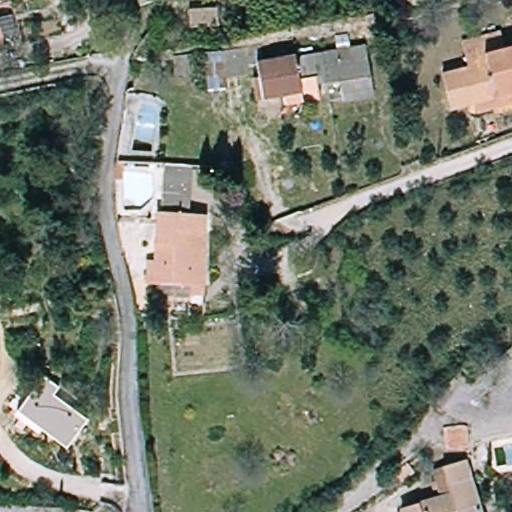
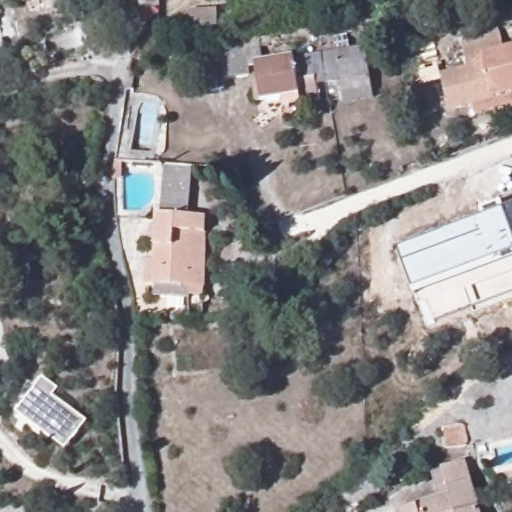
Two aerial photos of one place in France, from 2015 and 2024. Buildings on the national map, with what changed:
unchanged [(460,41),(499,31),(503,47),(512,45),(512,105),(475,115),(473,106),(449,111),(440,73),(467,67),(460,41)]
unchanged [(2,44),(0,44),(0,38),(2,44)]
unchanged [(324,56),(323,50),(367,46),(372,100),(342,103),(339,72),(300,75),(303,104),(285,105),(285,100),(258,102),(256,80),(263,79),(262,62),(324,56)]
unchanged [(249,50),(251,80),(226,83),(223,53),(249,50)]
unchanged [(204,222),(201,297),(140,295),(141,262),(147,262),(150,227),(152,220),(157,220),(160,180),(160,174),(189,176),(188,182),(185,221),(204,222)]
new [(512,207),(512,262),(418,297),(400,250),(512,207)]
unchanged [(86,421),(67,450),(17,411),(43,379),(58,389),(54,397),(86,421)]
unchanged [(446,440),(468,440),(468,457),(447,458),(446,440)]
unchanged [(437,506),(430,479),(464,469),(478,512),(419,512),(437,506)]

